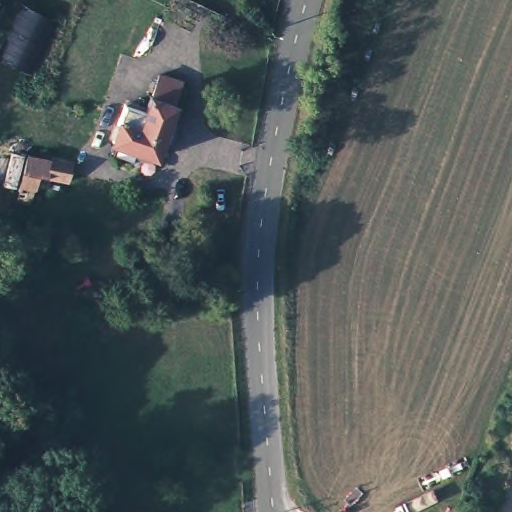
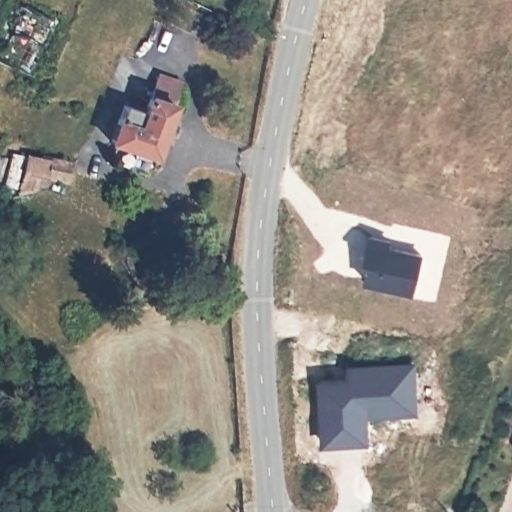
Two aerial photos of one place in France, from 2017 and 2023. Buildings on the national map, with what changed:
unchanged [(30,77),(11,69),(7,77),(0,75),(0,52),(20,2),(57,19),(30,77)]
unchanged [(171,126),(160,161),(107,142),(119,104),(140,112),(145,97),(146,97),(154,76),(176,84),(170,106),(164,122),(171,126)]
unchanged [(71,167),(70,183),(24,177),(26,162),(71,167)]
new [(368,260),(363,260),(369,235),(388,239),(387,245),(420,253),(410,292),(363,281),(368,260)]
new [(348,379),(347,366),(411,364),(413,412),(363,414),(364,441),(322,442),(320,380),(348,379)]

